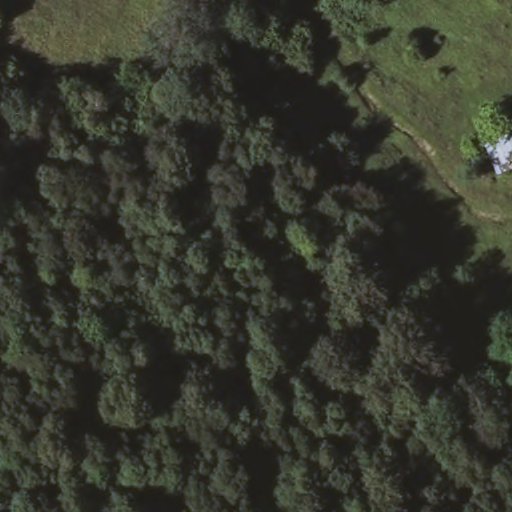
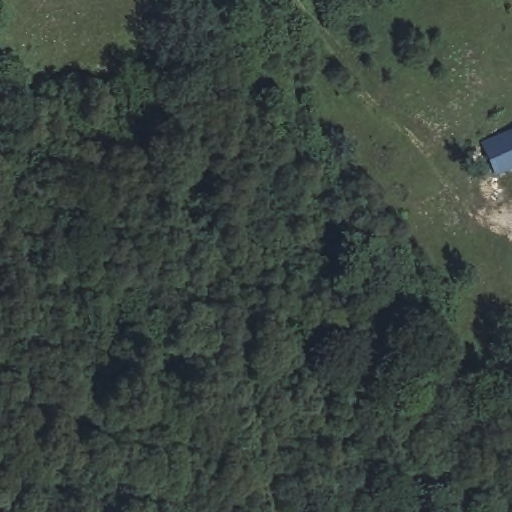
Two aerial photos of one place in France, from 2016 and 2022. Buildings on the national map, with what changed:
demolished [(512,134),(512,172),(500,176),(481,146),(512,134)]
new [(489,147),(512,134),(512,177),(510,179),(489,147)]

